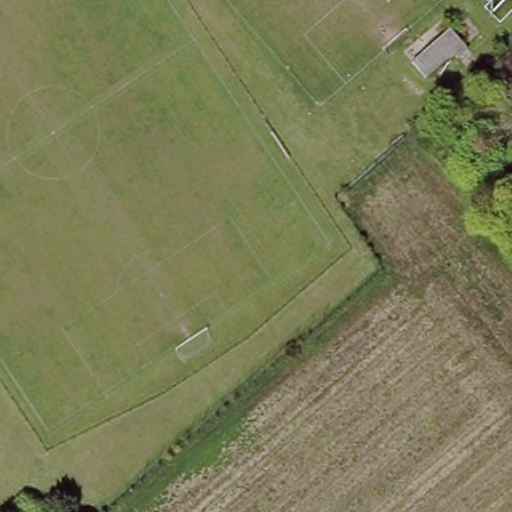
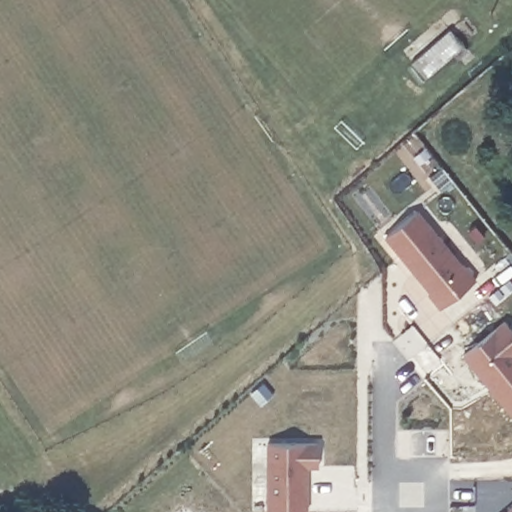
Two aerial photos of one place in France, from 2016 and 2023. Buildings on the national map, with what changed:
unchanged [(473,64),(468,59),(433,89),(411,62),(450,29),(473,56),(477,61),(473,64)]
new [(441,308),(428,294),(430,292),(385,237),(418,210),(476,280),(441,308)]
new [(511,416),(463,355),(504,321),(512,331),(512,416),(511,416)]
new [(319,467),(308,467),(308,511),(266,512),(266,443),(318,442),(319,467)]
new [(512,507),(512,512),(506,512),(512,507)]

